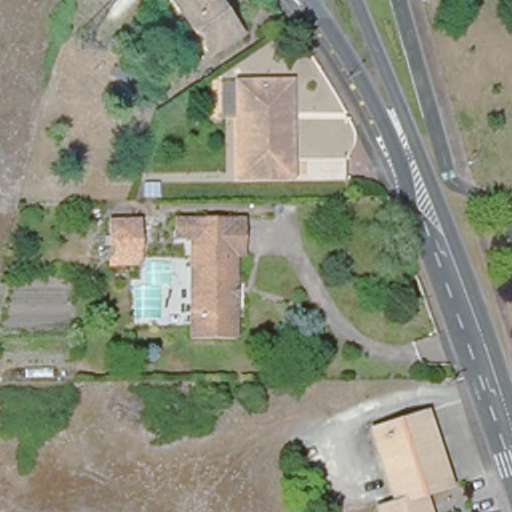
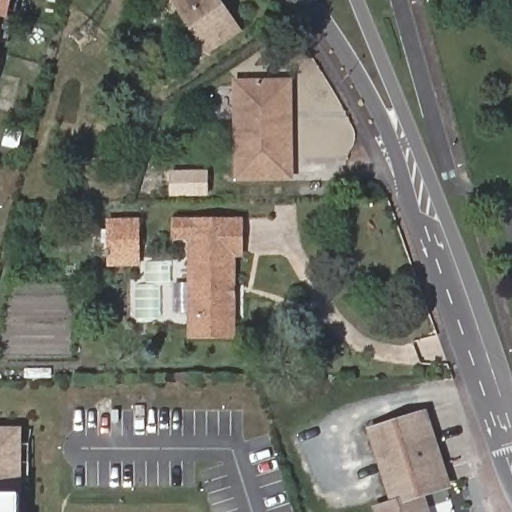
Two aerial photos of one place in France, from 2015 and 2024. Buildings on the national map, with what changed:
new [(1,17),(0,24),(0,0),(13,0),(9,19),(1,17)]
unchanged [(207,47),(178,0),(221,0),(239,28),(207,47)]
unchanged [(293,112),(293,126),(294,157),(299,157),(299,177),(249,178),(248,119),(228,119),(227,84),(247,84),(293,84),(293,112)]
unchanged [(190,212),(242,212),(241,232),(234,232),(236,316),(192,317),(190,212)]
unchanged [(107,234),(140,233),(140,260),(107,260),(107,234)]
unchanged [(376,502),(392,496),(372,427),(425,410),(446,480),(424,488),(431,512),(380,512),(376,502)]
new [(22,426),(22,493),(19,493),(19,512),(0,512),(0,426),(22,426)]

